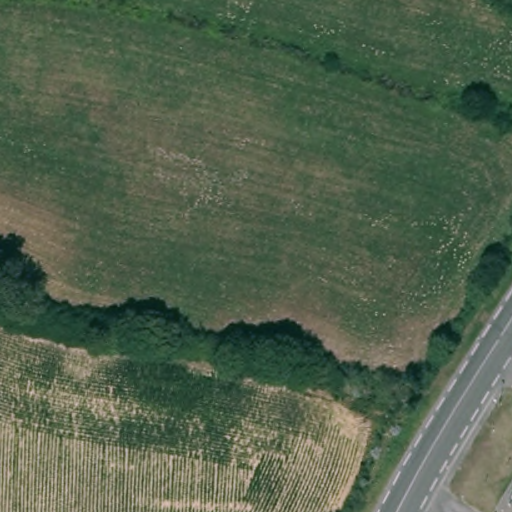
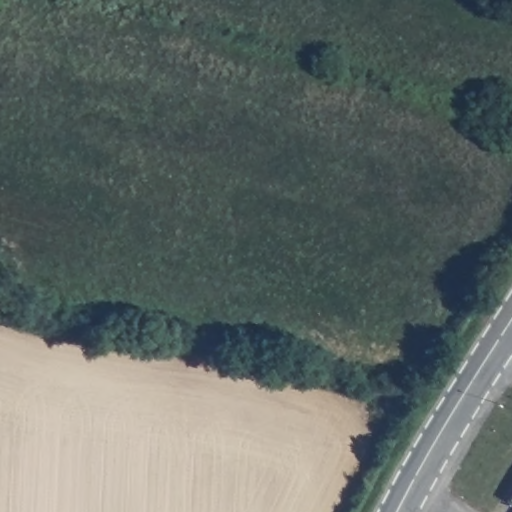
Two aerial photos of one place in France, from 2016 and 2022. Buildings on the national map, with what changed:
unchanged [(512,495),(512,499),(510,498),(512,495)]

